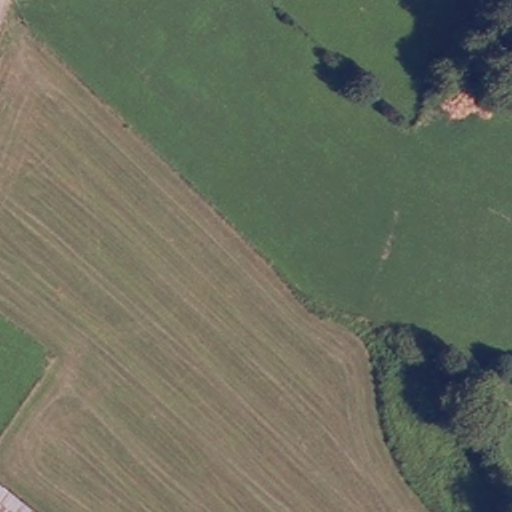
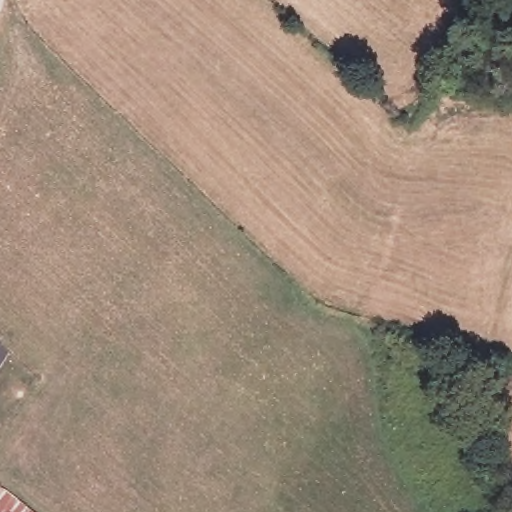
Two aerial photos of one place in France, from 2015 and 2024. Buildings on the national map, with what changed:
unchanged [(0,512),(0,493),(25,512),(0,512)]

